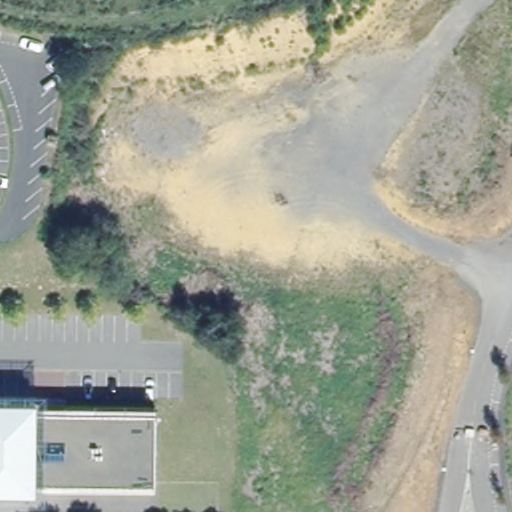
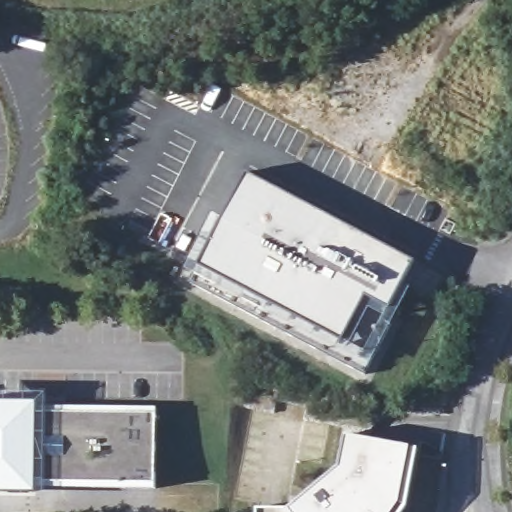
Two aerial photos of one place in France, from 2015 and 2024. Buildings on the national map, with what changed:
new [(246,171),(415,260),(383,319),(392,323),(365,375),(187,282),(246,171)]
unchanged [(35,487),(35,491),(0,490),(0,401),(36,402),(36,406),(156,407),(156,412),(155,483),(155,488),(35,487)]
new [(405,506),(401,512),(258,512),(258,508),(289,506),(340,466),(345,434),(418,448),(405,506)]

